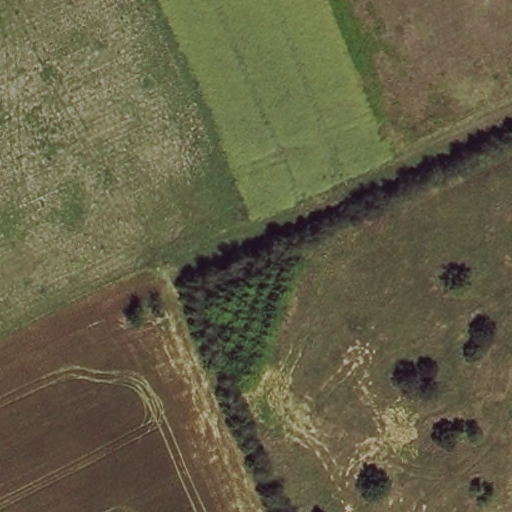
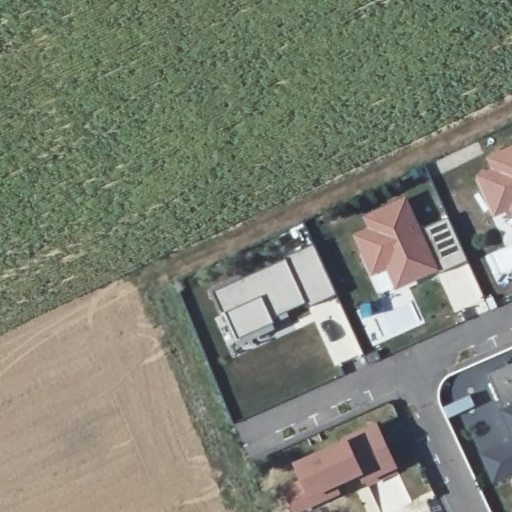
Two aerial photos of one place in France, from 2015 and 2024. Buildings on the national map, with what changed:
new [(512,147),(512,219),(509,212),(494,219),(475,176),(490,170),(485,159),(512,147)]
new [(368,230),(363,218),(406,200),(420,230),(447,220),(467,262),(395,292),(385,272),(371,278),(352,236),(368,230)]
new [(286,261),(284,258),(313,246),(335,296),(307,308),(304,303),(271,320),(273,325),(233,343),(213,294),(286,261)]
new [(512,368),(512,443),(483,375),(510,365),(512,368)]
new [(343,442),(342,439),(375,425),(397,471),(364,487),(360,480),(336,490),(340,497),(309,512),(290,512),(281,490),(299,481),(293,465),(343,442)]
new [(490,483),(478,457),(512,443),(512,473),(490,483)]

